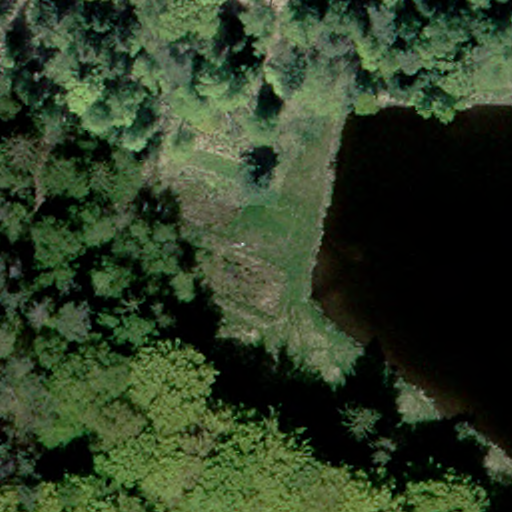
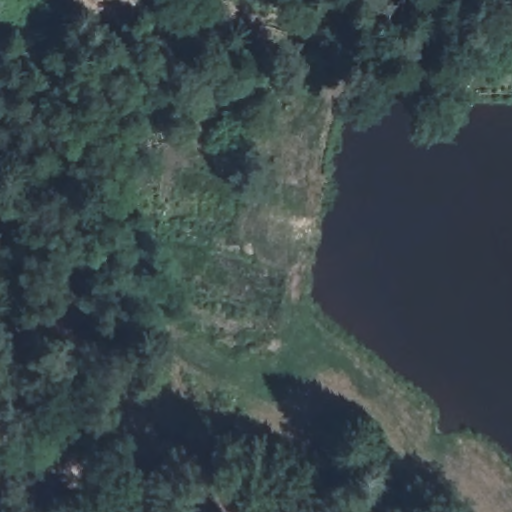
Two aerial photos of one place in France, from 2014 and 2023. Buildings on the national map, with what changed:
[]

